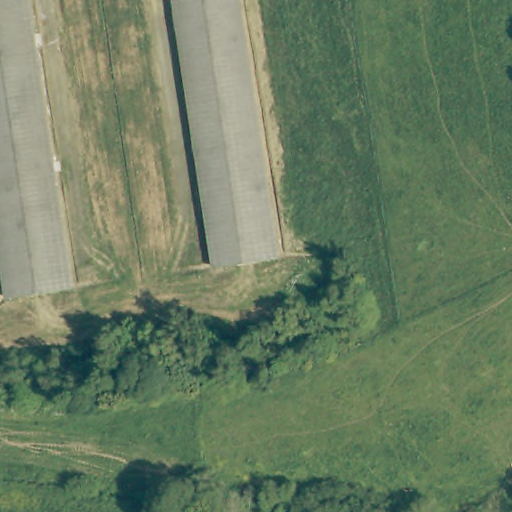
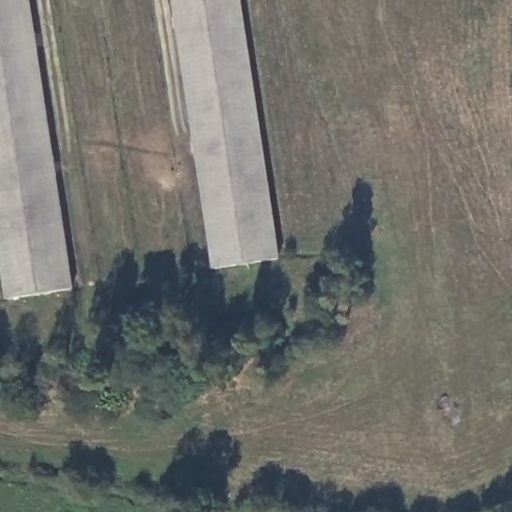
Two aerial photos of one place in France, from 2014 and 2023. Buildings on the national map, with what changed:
unchanged [(80,286),(21,297),(0,171),(0,0),(33,0),(80,286)]
unchanged [(288,259),(229,268),(185,0),(246,0),(288,259)]

